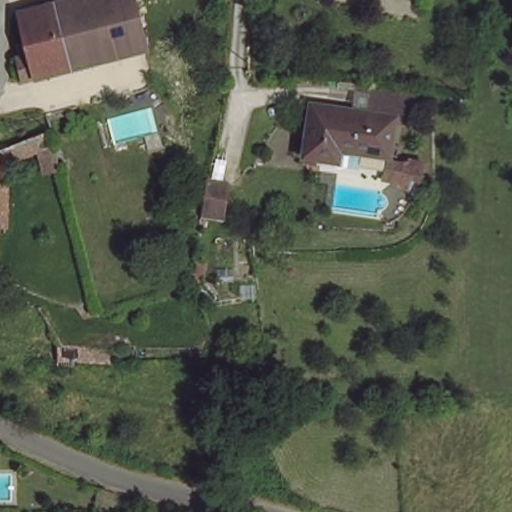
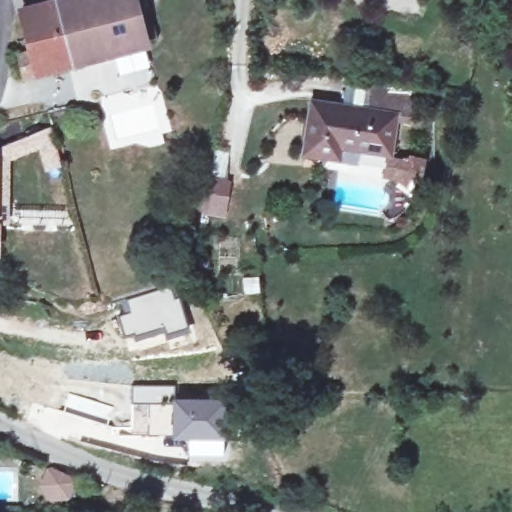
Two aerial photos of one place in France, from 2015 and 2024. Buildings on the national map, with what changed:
unchanged [(25,75),(20,54),(32,51),(22,11),(62,0),(136,0),(145,33),(150,31),(152,37),(146,38),(147,43),(37,72),(25,75)]
unchanged [(338,162),(339,159),(305,153),(312,101),(367,109),(370,87),(399,92),(396,114),(390,154),(362,149),(359,165),(338,162)]
unchanged [(50,126),(59,152),(62,166),(47,171),(41,146),(9,158),(9,224),(0,224),(0,146),(50,126)]
unchanged [(402,179),(386,175),(390,161),(405,165),(402,179)]
unchanged [(223,178),(219,202),(200,200),(205,175),(223,178)]
new [(129,311),(125,299),(175,283),(189,327),(165,334),(164,326),(125,336),(119,314),(129,311)]
unchanged [(81,302),(97,296),(103,294),(106,304),(100,306),(84,311),(81,302)]
unchanged [(111,359),(59,356),(60,341),(112,343),(111,359)]
new [(188,437),(172,434),(131,433),(131,404),(130,385),(175,384),(175,397),(229,396),(227,438),(227,455),(189,455),(188,437)]
new [(70,393),(112,406),(107,420),(65,408),(70,393)]
new [(47,465),(79,477),(70,503),(51,499),(36,490),(47,465)]

